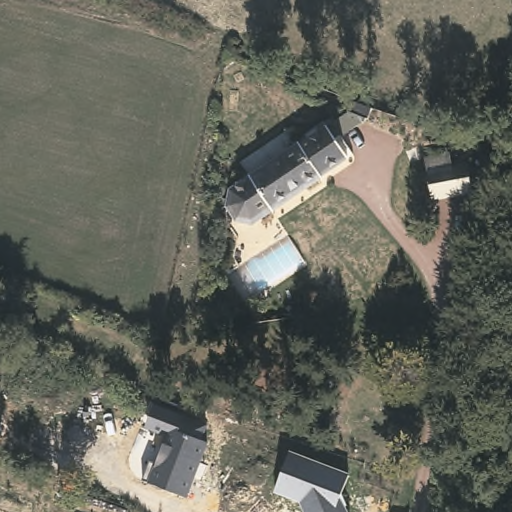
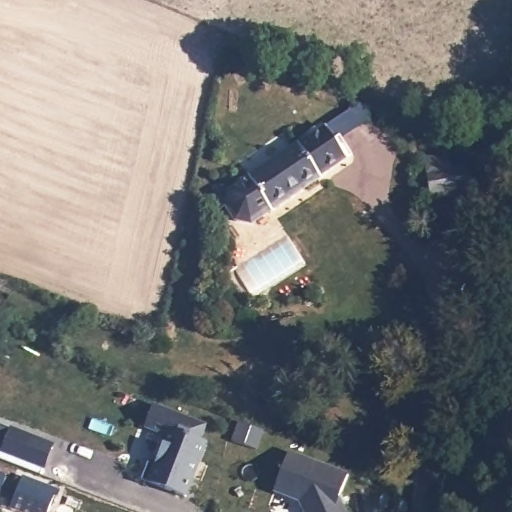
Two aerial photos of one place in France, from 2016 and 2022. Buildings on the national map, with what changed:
unchanged [(352,158),(326,176),(327,178),(277,211),(276,209),(256,222),(242,219),(233,205),(237,191),(256,179),(255,177),(305,143),(305,145),(332,127),(352,158)]
unchanged [(452,167),(467,164),(472,192),(431,199),(423,159),(450,154),(452,167)]
unchanged [(149,481),(142,479),(149,461),(155,463),(165,435),(145,429),(152,404),(208,423),(204,440),(208,442),(187,497),(149,481)]
new [(45,466),(2,449),(10,426),(54,443),(45,466)]
unchanged [(274,491),(290,450),(350,473),(342,491),(349,512),(306,512),(301,500),(274,491)]
new [(22,476),(57,490),(48,512),(25,512),(10,506),(22,476)]

